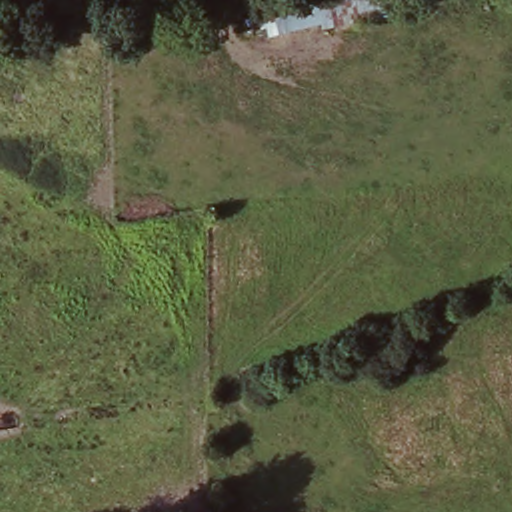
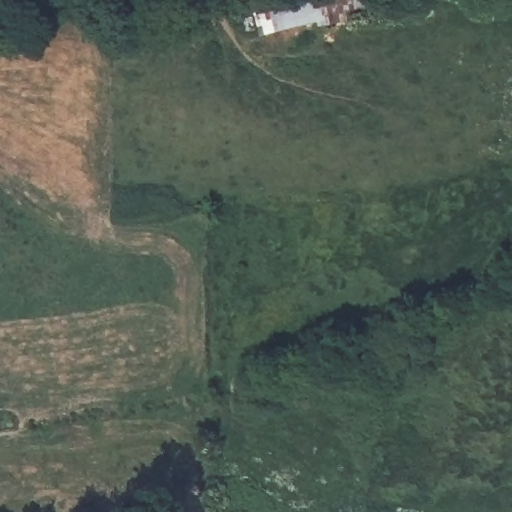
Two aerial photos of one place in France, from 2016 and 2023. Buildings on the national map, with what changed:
unchanged [(292,0),(392,0),(395,15),(266,45),(260,7),(292,0)]

